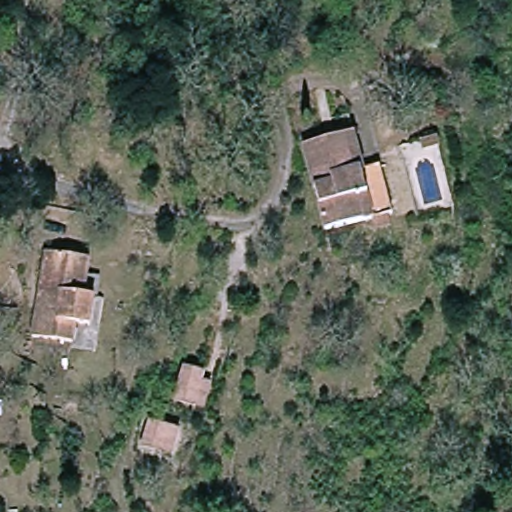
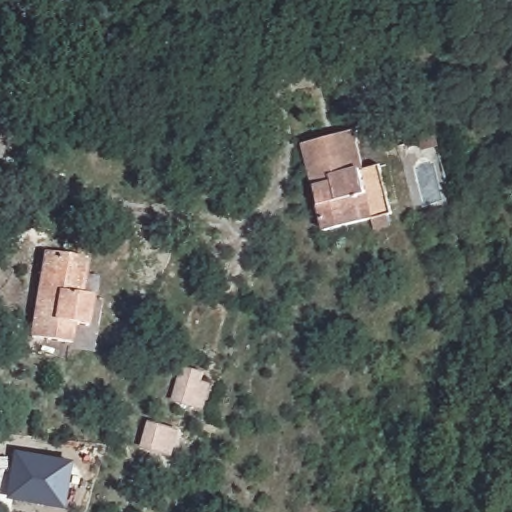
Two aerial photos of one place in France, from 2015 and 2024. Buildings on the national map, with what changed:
unchanged [(358,176),(375,172),(383,204),(317,220),(300,150),(349,138),(358,176)]
unchanged [(87,294),(98,295),(95,324),(85,323),(83,342),(42,338),(49,250),(90,254),(87,294)]
unchanged [(175,405),(187,369),(220,378),(206,412),(175,405)]
unchanged [(142,452),(151,422),(185,432),(175,460),(142,452)]
new [(7,498),(17,450),(78,461),(70,509),(7,498)]

